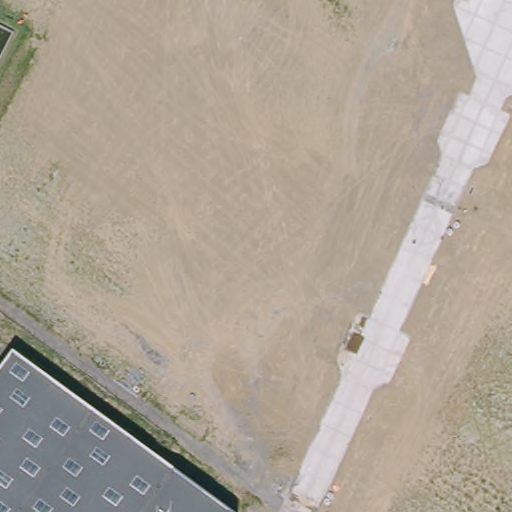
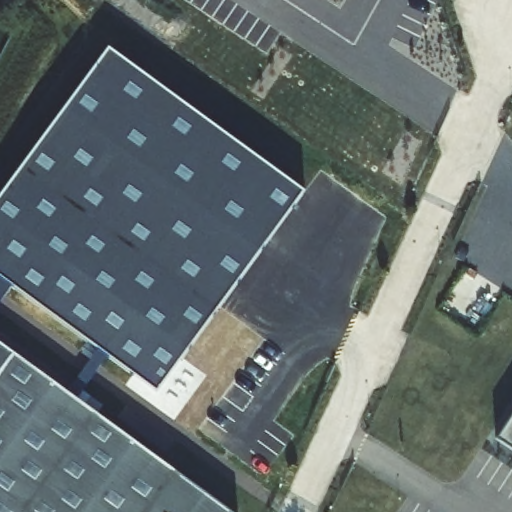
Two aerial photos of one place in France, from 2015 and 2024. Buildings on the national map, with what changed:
new [(0,277),(0,196),(108,49),(304,192),(156,392),(0,277)]
unchanged [(229,512),(0,512),(0,349),(229,512)]
new [(512,427),(512,460),(496,451),(512,427)]

